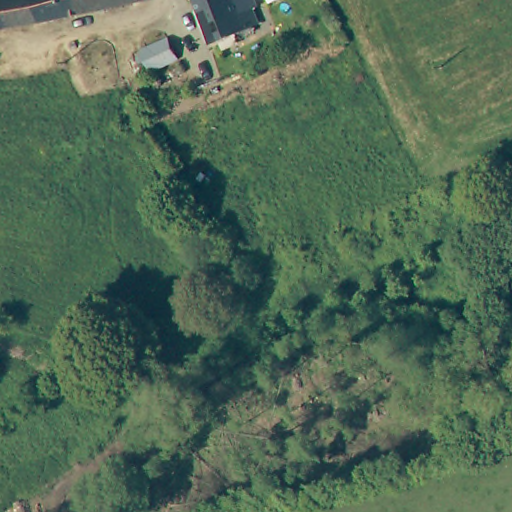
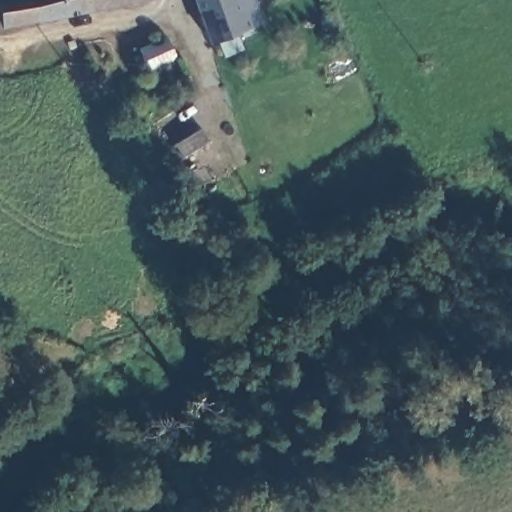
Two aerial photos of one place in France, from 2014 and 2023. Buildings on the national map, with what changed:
unchanged [(0,11),(0,0),(118,0),(3,25),(0,11)]
unchanged [(253,7),(259,22),(209,44),(193,0),(255,0),(257,5),(253,7)]
unchanged [(3,25),(0,26),(0,11),(3,25)]
unchanged [(148,66),(141,69),(138,63),(135,56),(140,54),(138,50),(166,37),(177,59),(151,70),(148,66)]

